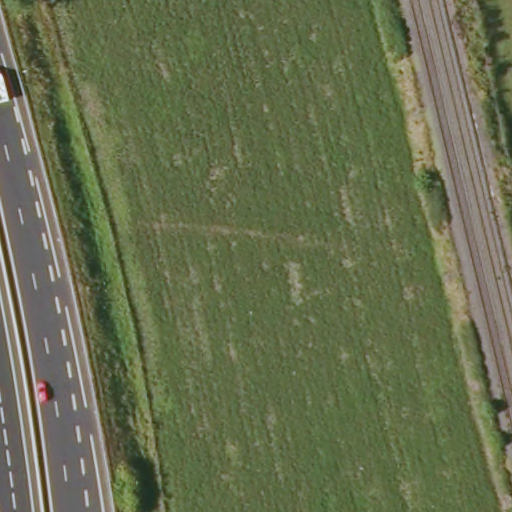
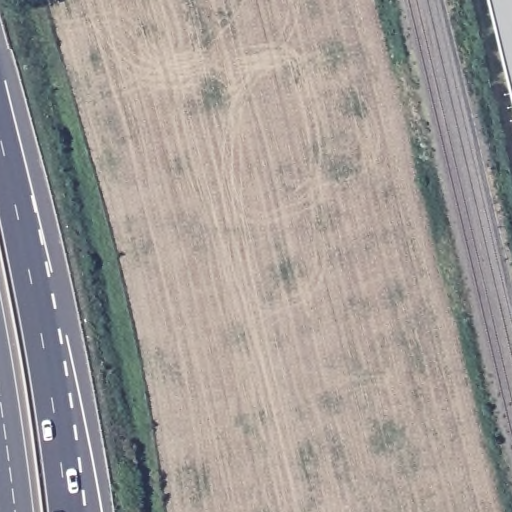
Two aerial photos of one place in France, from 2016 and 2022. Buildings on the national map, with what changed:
new [(512,0),(512,84),(492,0),(512,0)]

